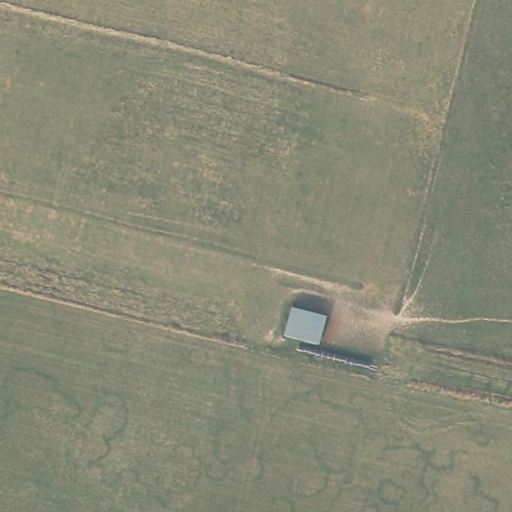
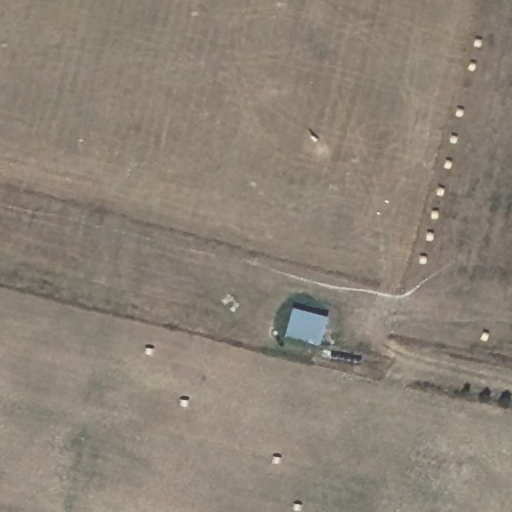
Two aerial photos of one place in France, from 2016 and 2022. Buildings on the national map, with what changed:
[]

